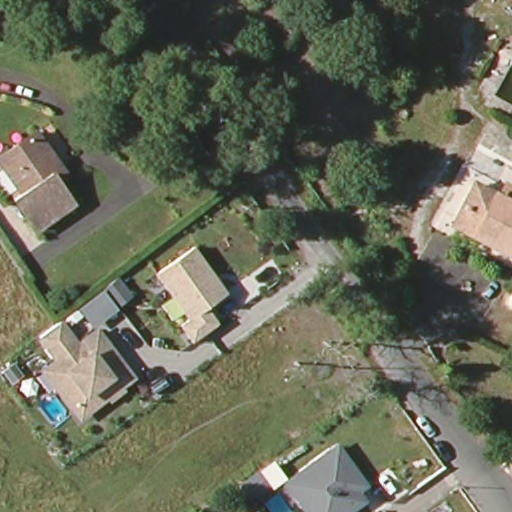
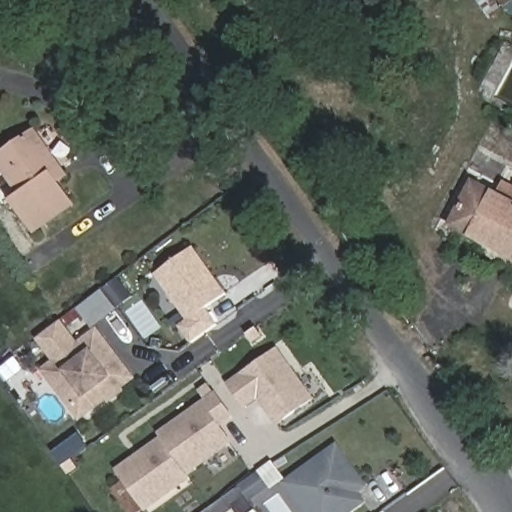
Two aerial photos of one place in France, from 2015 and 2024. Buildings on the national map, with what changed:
unchanged [(506,9),(500,0),(512,0),(512,5),(506,9)]
unchanged [(58,165),(49,171),(54,180),(71,204),(30,231),(9,199),(18,191),(0,164),(0,154),(34,130),(58,165)]
unchanged [(448,228),(470,188),(493,200),(497,192),(499,188),(511,194),(512,192),(512,261),(493,251),(495,247),(487,243),(485,247),(448,228)]
unchanged [(229,295),(210,310),(220,324),(192,344),(180,327),(187,320),(155,277),(194,247),(229,295)]
new [(115,276),(130,294),(115,305),(116,306),(91,326),(76,306),(101,287),(115,276)]
unchanged [(80,341),(99,328),(137,378),(125,387),(127,393),(109,406),(107,404),(81,422),(42,370),(50,360),(37,341),(64,322),(80,341)]
new [(276,345),(311,394),(276,419),(257,393),(244,403),(228,380),(276,345)]
new [(161,435),(158,431),(215,390),(231,412),(217,422),(229,438),(186,470),(189,474),(146,505),(118,466),(161,435)]
unchanged [(360,491),(367,500),(351,512),(301,512),(280,483),(252,505),(239,485),(273,461),(287,480),(337,443),(368,486),(360,491)]
new [(257,512),(249,512),(254,508),(257,512)]

